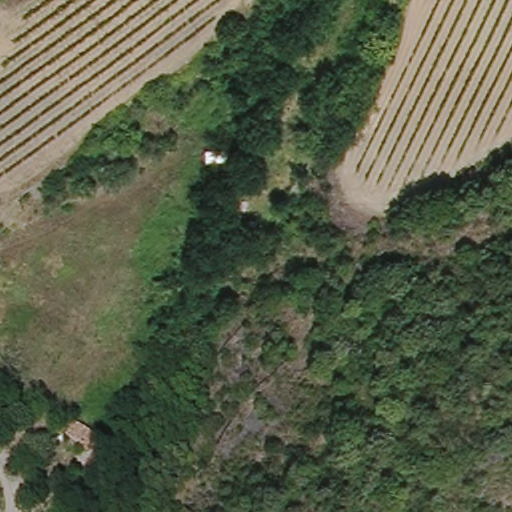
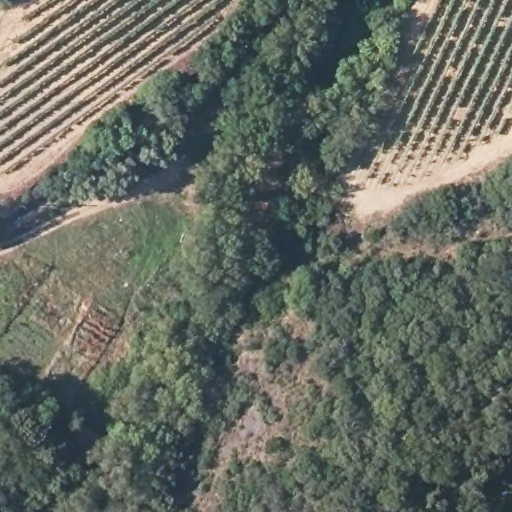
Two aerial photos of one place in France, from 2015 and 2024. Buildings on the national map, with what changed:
unchanged [(71,435),(76,421),(95,429),(88,443),(71,435)]

